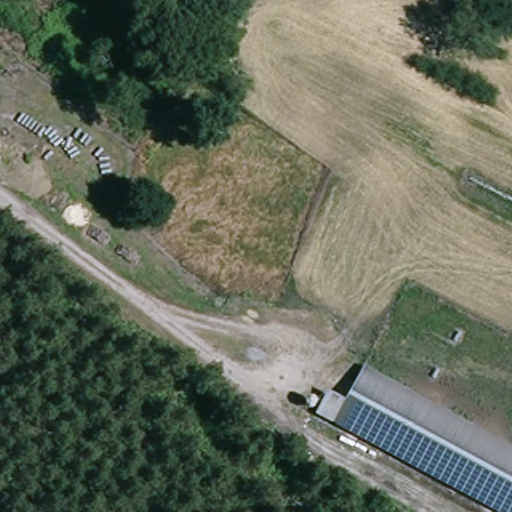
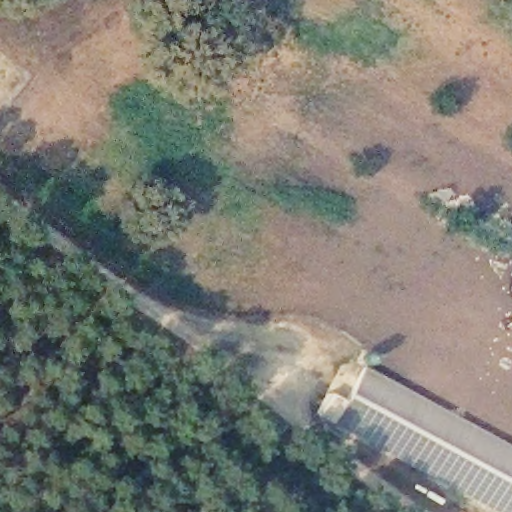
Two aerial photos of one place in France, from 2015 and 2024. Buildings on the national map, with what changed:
unchanged [(346,408),(360,376),(512,440),(512,512),(320,430),(332,402),(346,408)]

